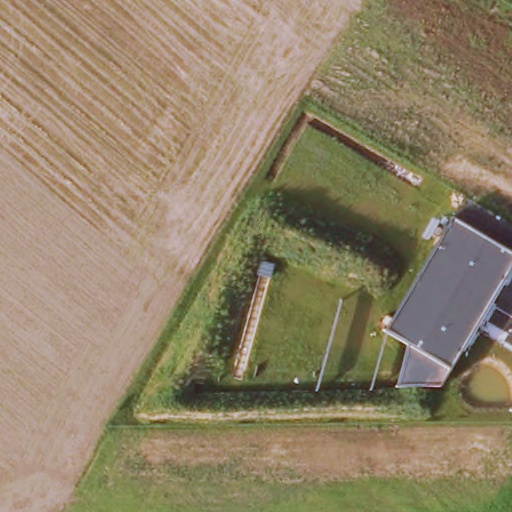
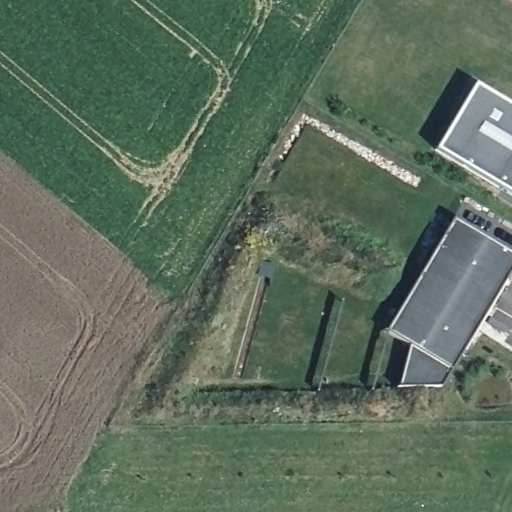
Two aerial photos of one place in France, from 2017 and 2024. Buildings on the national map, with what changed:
new [(467,91),(512,118),(512,207),(429,157),(467,91)]
unchanged [(396,388),(408,345),(384,332),(451,219),(512,256),(512,265),(440,387),(396,388)]

